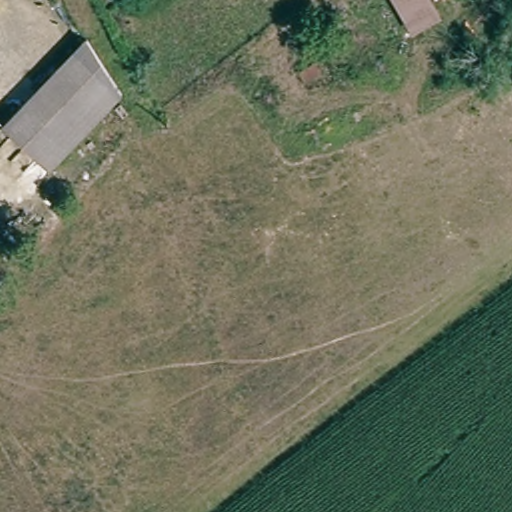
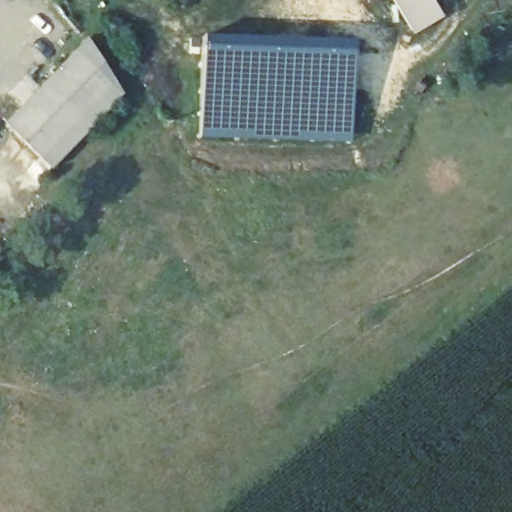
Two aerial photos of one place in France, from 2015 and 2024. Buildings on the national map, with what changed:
unchanged [(415,35),(395,0),(435,0),(447,20),(415,35)]
new [(229,39),(229,45),(283,46),(283,39),(358,40),(357,52),(354,85),(354,146),(198,141),(200,37),(229,39)]
unchanged [(129,91),(60,166),(13,122),(81,47),(129,91)]

